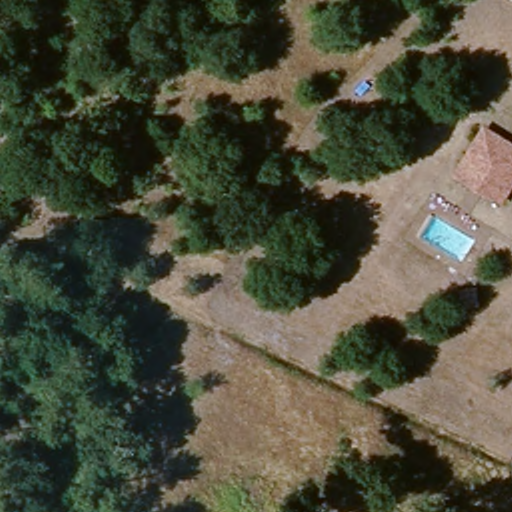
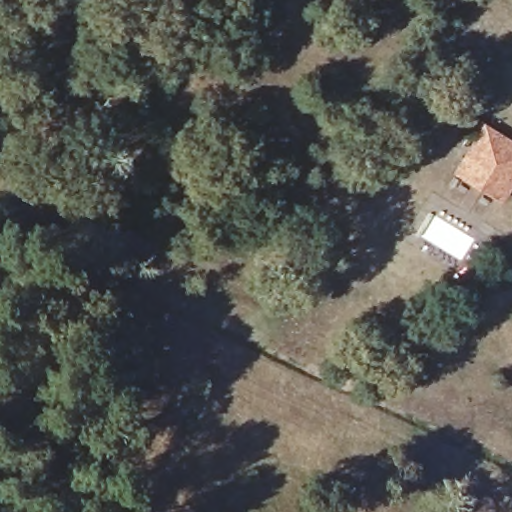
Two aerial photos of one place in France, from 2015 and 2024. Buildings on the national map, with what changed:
unchanged [(485,129),(512,144),(512,185),(503,200),(458,174),(485,129)]

